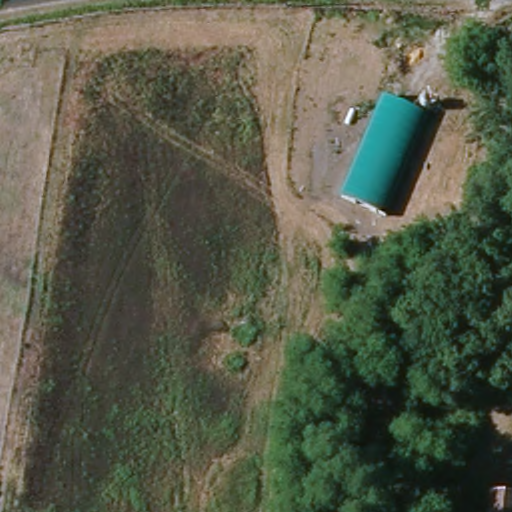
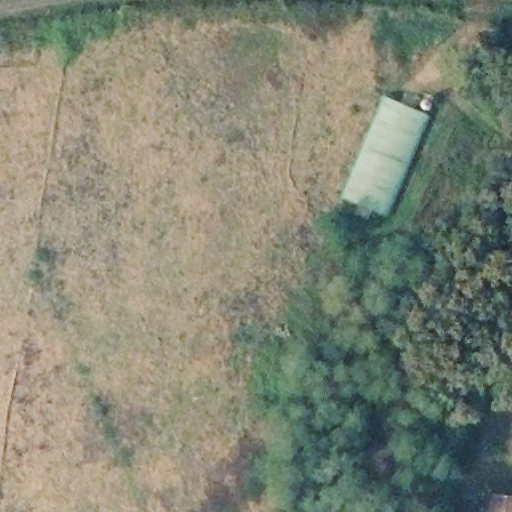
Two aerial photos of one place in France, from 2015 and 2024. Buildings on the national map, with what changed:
unchanged [(428,108),(385,213),(341,196),(384,91),(428,108)]
unchanged [(512,487),(512,512),(491,512),(497,485),(512,487)]

